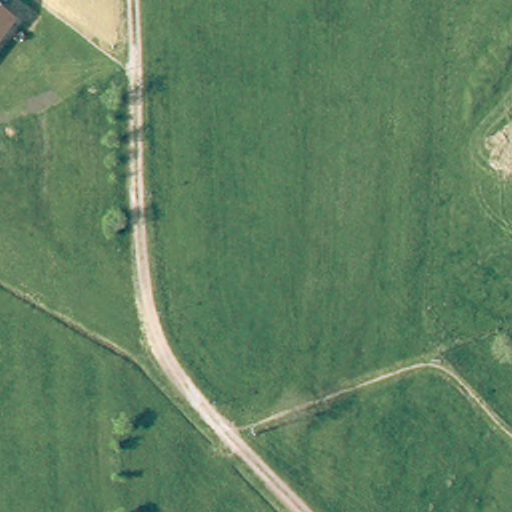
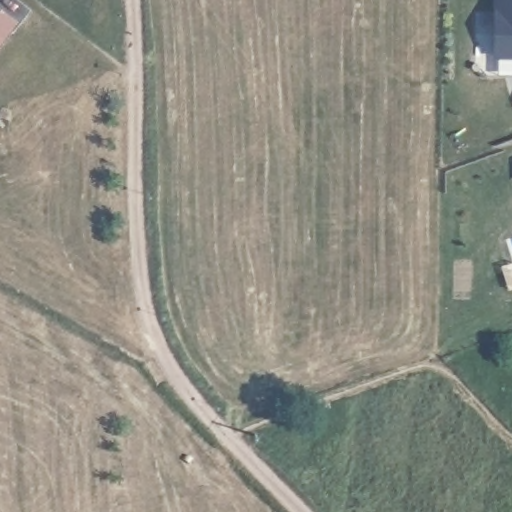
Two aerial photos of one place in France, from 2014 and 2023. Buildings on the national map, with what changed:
new [(492,57),(493,0),(512,0),(512,58),(492,57)]
unchanged [(0,41),(0,8),(16,20),(0,41)]

